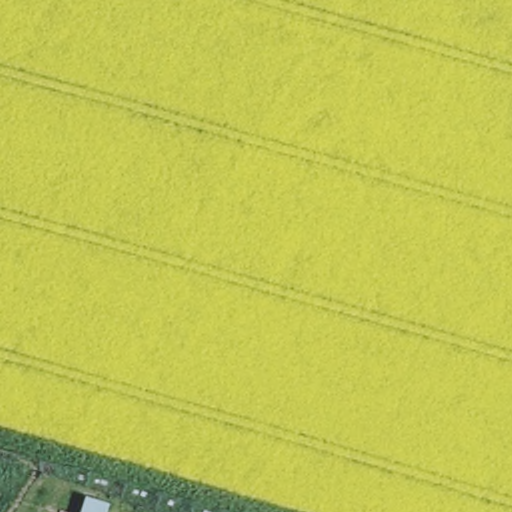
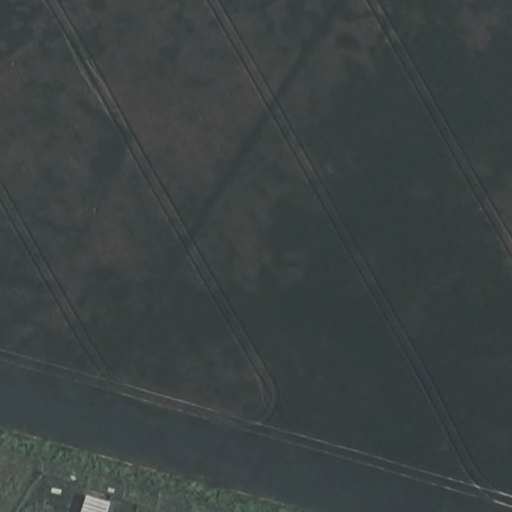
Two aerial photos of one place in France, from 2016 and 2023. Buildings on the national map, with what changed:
unchanged [(84,497),(109,506),(107,512),(80,512),(84,497)]

